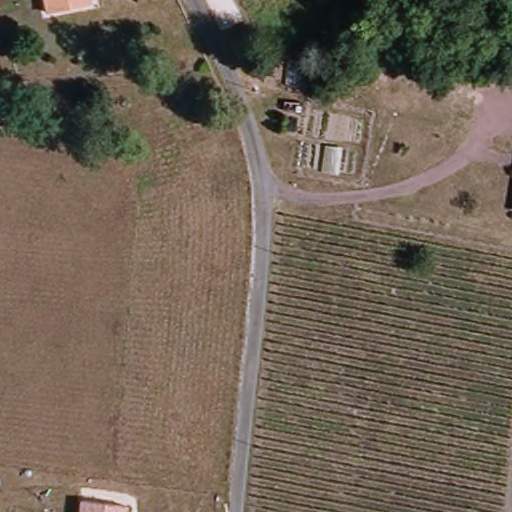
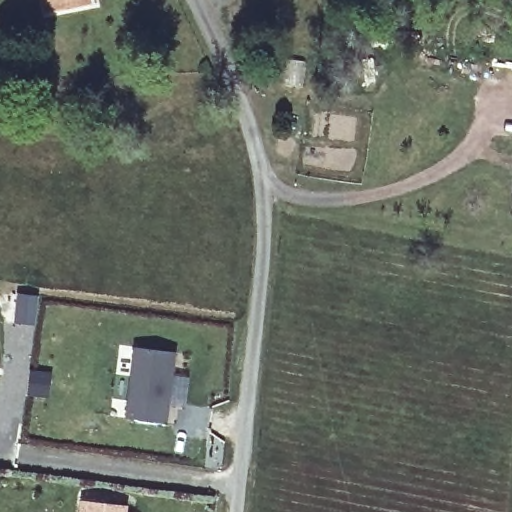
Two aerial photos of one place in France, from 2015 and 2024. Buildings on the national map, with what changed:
unchanged [(95,5),(49,9),(48,0),(95,0),(95,5)]
new [(16,291),(39,294),(34,325),(12,322),(16,291)]
new [(133,347),(175,352),(168,423),(125,418),(133,347)]
unchanged [(127,512),(80,512),(81,500),(128,506),(127,512)]

